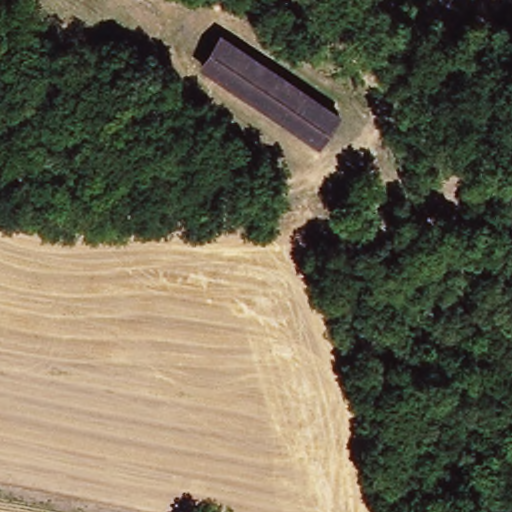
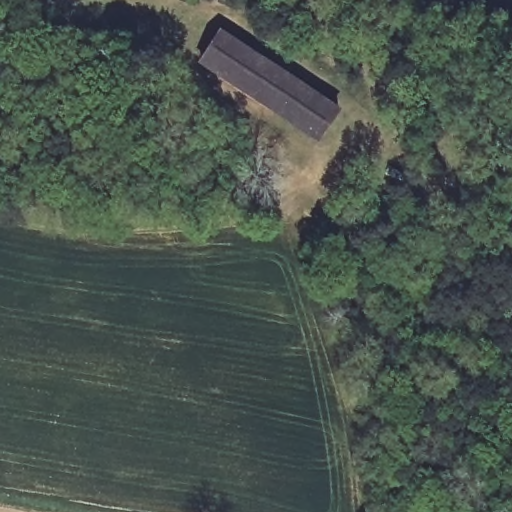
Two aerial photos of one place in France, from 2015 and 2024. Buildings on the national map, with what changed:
unchanged [(200,63),(223,27),(347,109),(321,144),(200,63)]

